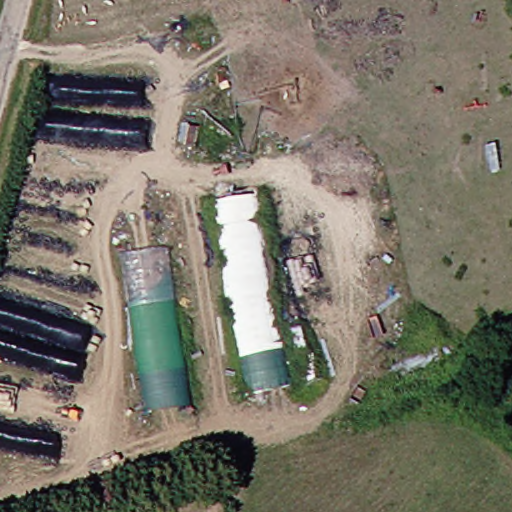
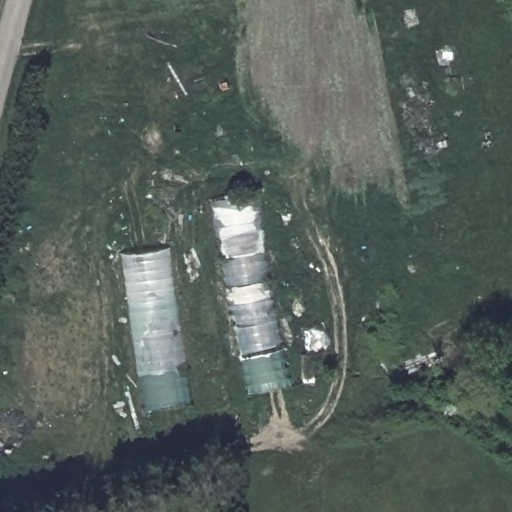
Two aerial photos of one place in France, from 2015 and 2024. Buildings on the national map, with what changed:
unchanged [(260,191),(293,385),(251,396),(212,199),(260,191)]
unchanged [(167,246),(194,400),(149,410),(122,253),(167,246)]

